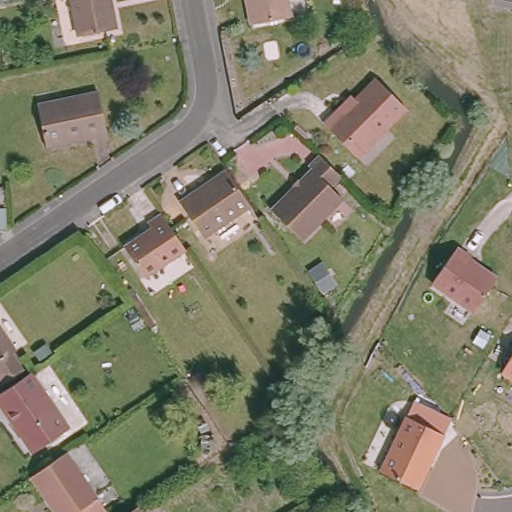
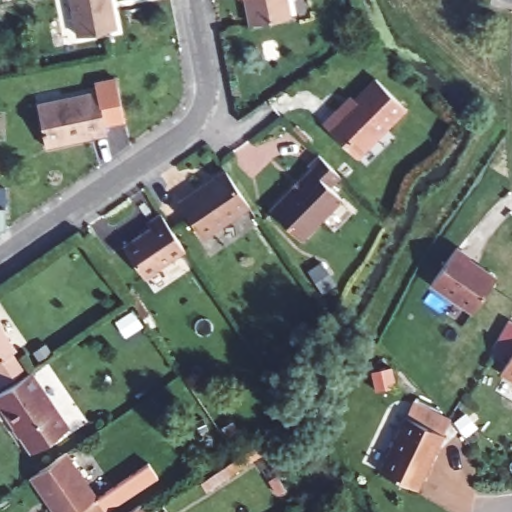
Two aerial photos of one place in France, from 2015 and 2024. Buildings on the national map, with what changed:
unchanged [(82,32),(77,0),(113,0),(118,26),(82,32)]
unchanged [(256,22),(252,0),(291,0),(294,15),(256,22)]
unchanged [(322,120),(333,108),(339,114),(376,75),(410,107),(362,159),(322,120)]
unchanged [(47,145),(40,104),(99,92),(107,134),(47,145)]
unchanged [(273,207),(313,165),(310,163),(320,152),(335,165),(343,173),(332,184),(343,196),(305,237),(273,207)]
unchanged [(201,235),(176,200),(222,167),(247,203),(201,235)]
unchanged [(0,203),(2,203),(4,227),(0,227),(0,203)]
unchanged [(147,278),(126,248),(153,230),(150,224),(163,215),(187,252),(147,278)]
unchanged [(500,275),(473,316),(431,287),(460,246),(500,275)]
unchanged [(24,372),(2,385),(0,382),(0,324),(15,350),(11,352),(24,372)]
unchanged [(500,372),(512,351),(512,380),(500,372)]
unchanged [(37,451),(0,397),(8,391),(36,372),(73,426),(37,451)]
unchanged [(453,418),(420,489),(380,471),(413,400),(453,418)]
unchanged [(54,512),(28,473),(52,457),(64,449),(103,507),(96,512),(54,512)]
unchanged [(146,512),(126,512),(140,503),(146,512)]

